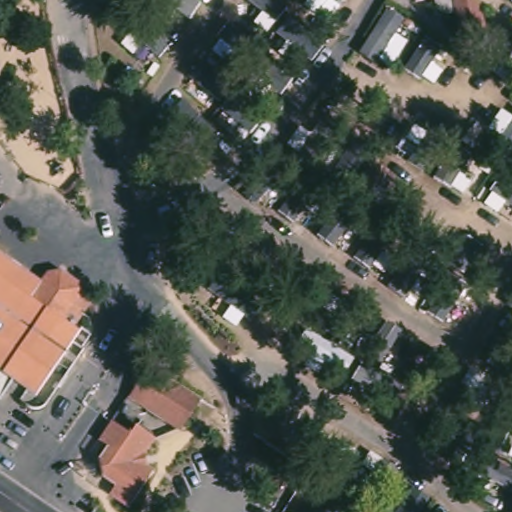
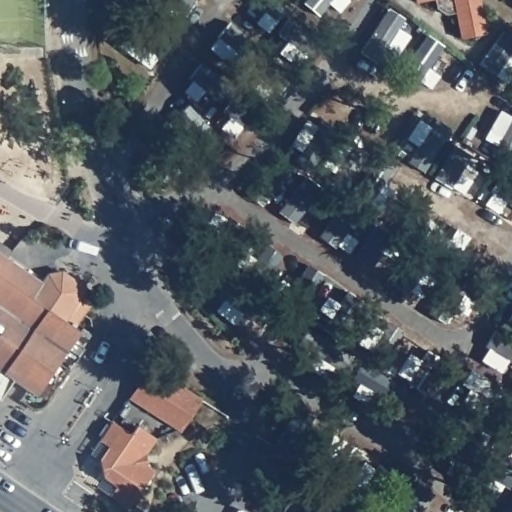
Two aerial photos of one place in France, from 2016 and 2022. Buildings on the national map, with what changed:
unchanged [(413,3),(413,0),(431,0),(413,3)]
unchanged [(480,31),(457,35),(451,9),(442,11),(434,8),(432,0),(474,0),(480,31)]
unchanged [(0,400),(0,253),(42,281),(47,273),(60,271),(62,271),(82,286),(82,287),(91,293),(90,302),(73,328),(77,333),(77,335),(71,344),(35,397),(12,381),(0,400)]
unchanged [(146,373),(194,406),(189,413),(173,436),(126,403),(141,380),(146,373)]
unchanged [(87,472),(86,468),(92,467),(102,450),(97,446),(107,429),(125,440),(130,433),(147,445),(139,459),(141,472),(149,477),(123,512),(119,512),(104,501),(110,492),(95,482),(91,482),(90,479),(79,482),(76,475),(87,472)]

